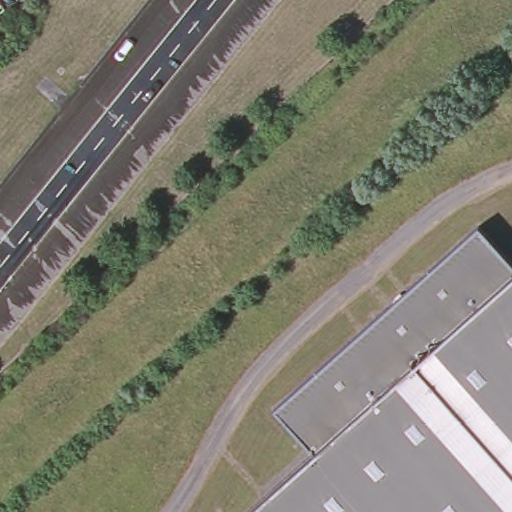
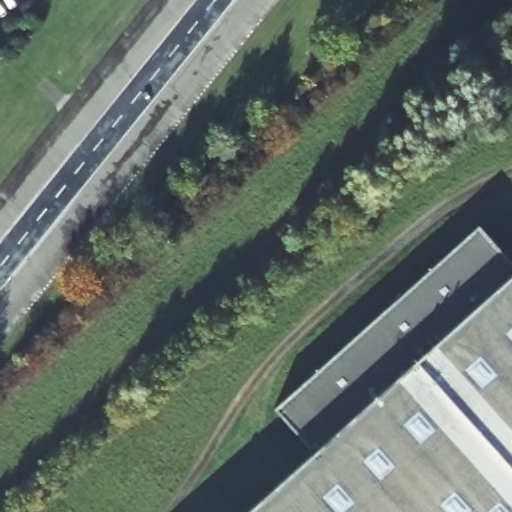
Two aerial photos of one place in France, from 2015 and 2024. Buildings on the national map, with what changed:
unchanged [(264,429),(469,245),(508,288),(512,285),(512,512),(258,512),(303,472),(264,429)]

